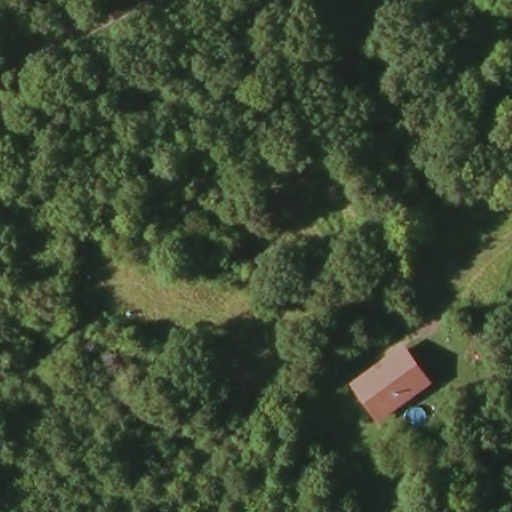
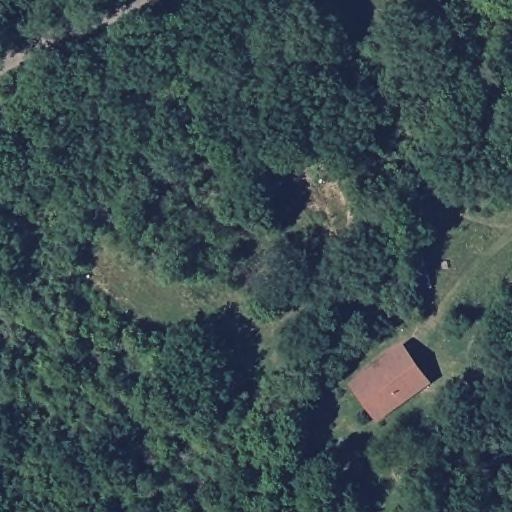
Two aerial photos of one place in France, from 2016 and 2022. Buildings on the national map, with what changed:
unchanged [(433,385),(378,423),(353,385),(407,346),(433,385)]

